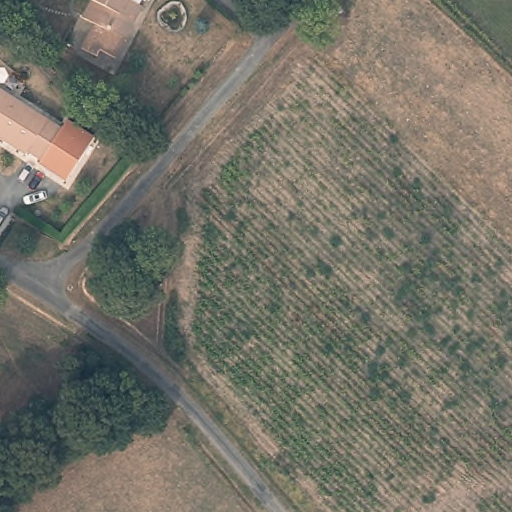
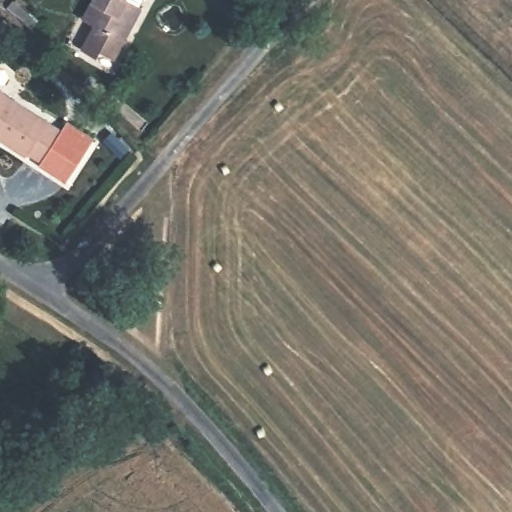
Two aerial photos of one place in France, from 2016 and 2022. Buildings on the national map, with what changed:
unchanged [(134,7),(136,8),(115,60),(100,53),(95,60),(80,54),(90,30),(78,25),(89,0),(137,0),(134,7)]
unchanged [(0,39),(0,26),(6,33),(0,39)]
unchanged [(59,127),(65,119),(92,138),(62,180),(35,161),(37,158),(25,149),(22,152),(0,137),(0,85),(59,127)]

